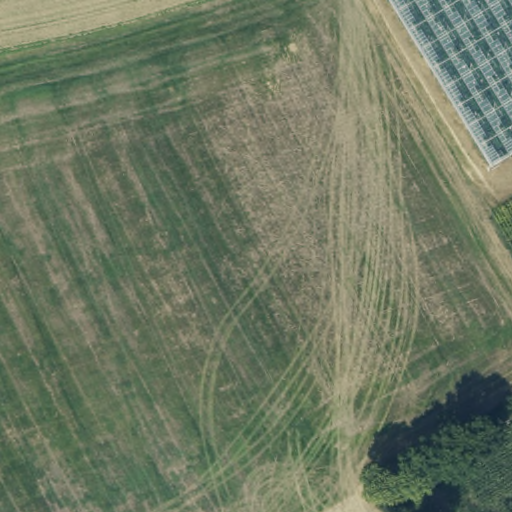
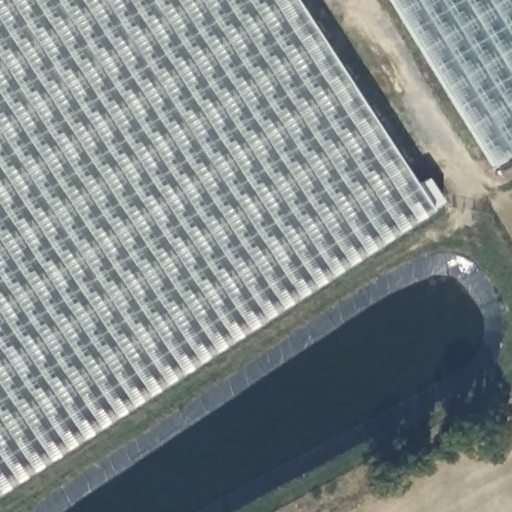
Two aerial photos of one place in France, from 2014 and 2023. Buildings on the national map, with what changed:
new [(0,489),(0,0),(290,0),(413,189),(426,179),(441,204),(428,213),(0,489)]
unchanged [(496,166),(392,0),(512,0),(512,156),(496,166)]

